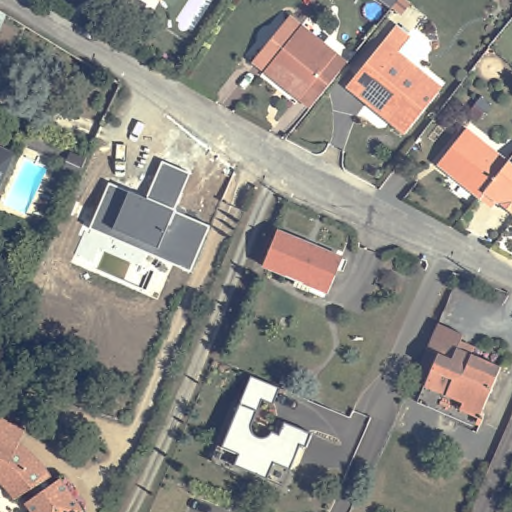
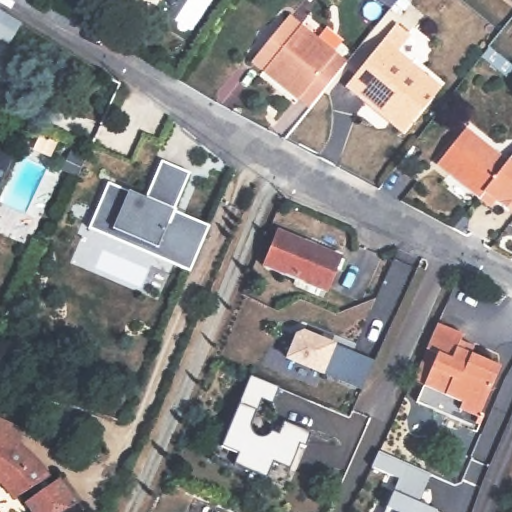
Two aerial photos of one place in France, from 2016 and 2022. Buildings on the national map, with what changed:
unchanged [(9,14),(0,32),(0,9),(9,14)]
unchanged [(306,110),(261,73),(250,63),(287,16),(299,26),(345,64),(306,110)]
unchanged [(357,78),(389,39),(403,50),(398,56),(440,91),(404,135),(366,104),(348,89),(357,78)]
unchanged [(440,165),(469,130),(492,150),(464,185),(440,165)]
unchanged [(0,200),(0,146),(20,155),(0,200)]
unchanged [(512,165),(512,214),(498,203),(494,209),(464,185),(492,150),(512,165)]
unchanged [(91,227),(109,181),(129,190),(145,196),(160,160),(189,172),(173,210),(209,225),(189,270),(91,227)]
unchanged [(282,232),(345,258),(330,294),(267,267),(282,232)]
new [(297,334),(303,331),(373,363),(361,390),(287,356),(297,334)]
unchanged [(440,333),(455,340),(467,346),(462,357),(501,375),(505,376),(478,435),(472,431),(422,408),(420,407),(427,392),(415,387),(430,355),(435,346),(440,333)]
unchanged [(278,388),(271,405),(260,400),(250,424),(250,427),(251,433),(255,436),(260,438),(265,436),(269,433),(270,431),(276,435),(282,422),(310,433),(305,448),(298,445),(288,470),(272,463),(265,480),(232,466),(237,455),(220,448),(250,376),(278,388)]
unchanged [(17,443),(20,445),(25,449),(30,453),(35,458),(40,463),(44,468),(49,475),(46,477),(50,483),(60,475),(84,506),(76,512),(37,512),(27,500),(44,488),(39,482),(17,497),(15,493),(13,490),(10,487),(8,484),(5,481),(2,479),(0,478),(0,415),(25,426),(17,443)]
new [(430,473),(416,503),(435,511),(435,512),(382,512),(397,478),(370,466),(376,450),(430,473)]

